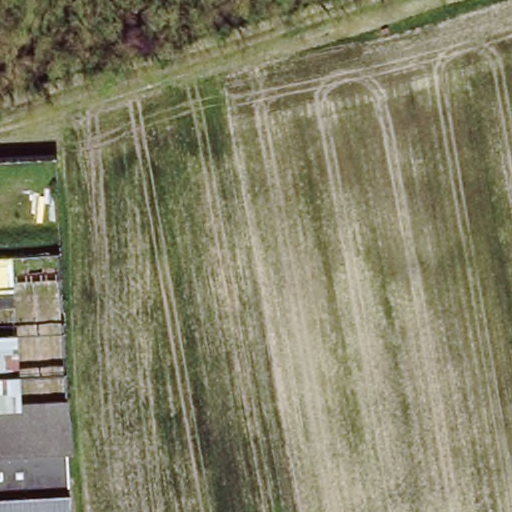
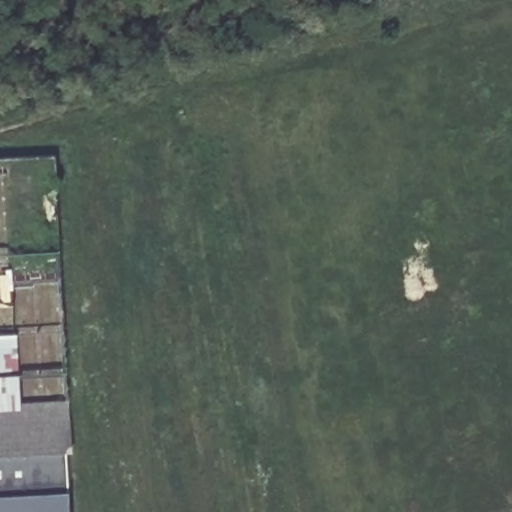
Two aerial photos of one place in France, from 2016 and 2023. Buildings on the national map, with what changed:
unchanged [(16,293),(0,294),(0,252),(15,252),(16,293)]
unchanged [(23,401),(0,401),(0,334),(19,333),(23,401)]
unchanged [(0,401),(23,401),(66,401),(70,512),(0,512),(0,401)]

